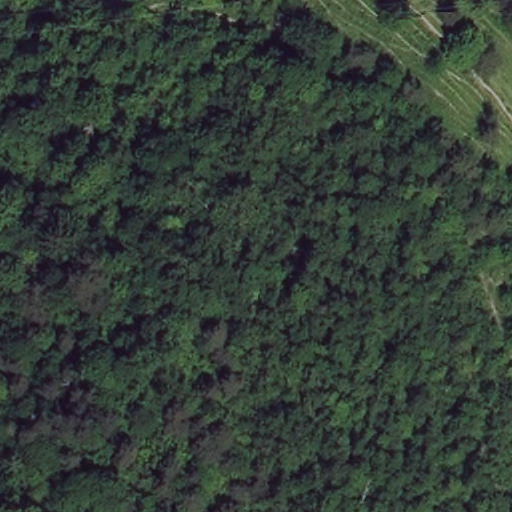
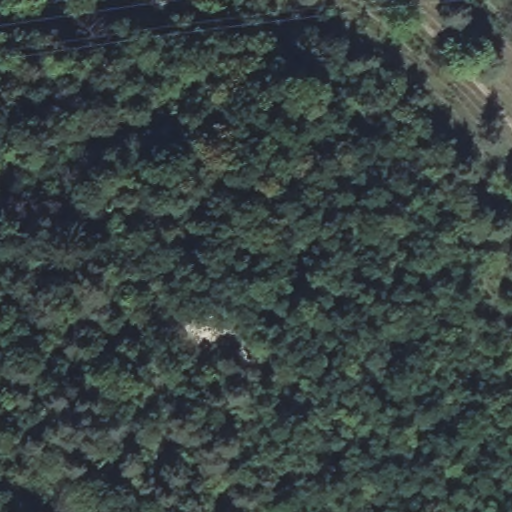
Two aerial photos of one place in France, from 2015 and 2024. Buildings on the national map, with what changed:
[]

